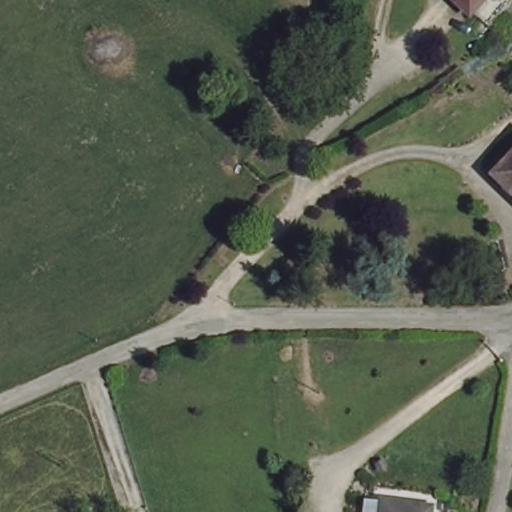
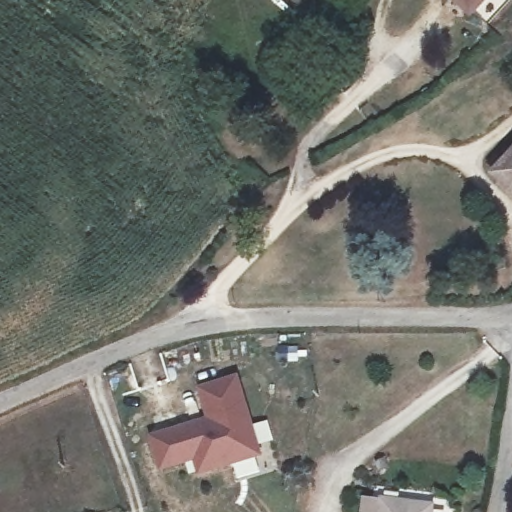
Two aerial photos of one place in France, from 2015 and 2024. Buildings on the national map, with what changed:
unchanged [(469,17),(453,0),(486,0),(469,17)]
unchanged [(491,171),(501,162),(508,168),(512,163),(512,197),(495,181),(498,177),(491,171)]
new [(198,473),(193,460),(163,469),(152,437),(207,418),(198,390),(234,378),(259,453),(198,473)]
unchanged [(442,510),(441,512),(366,512),(368,499),(442,510)]

